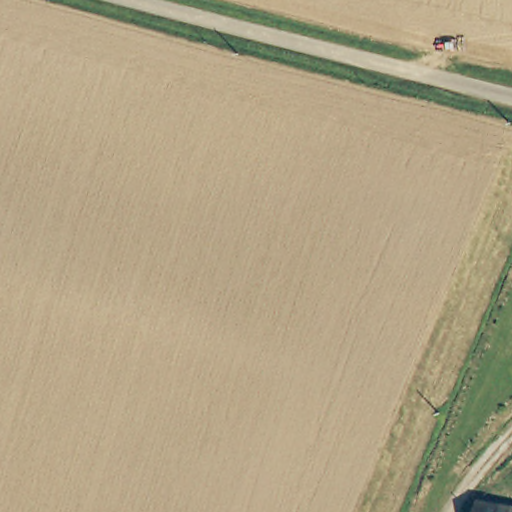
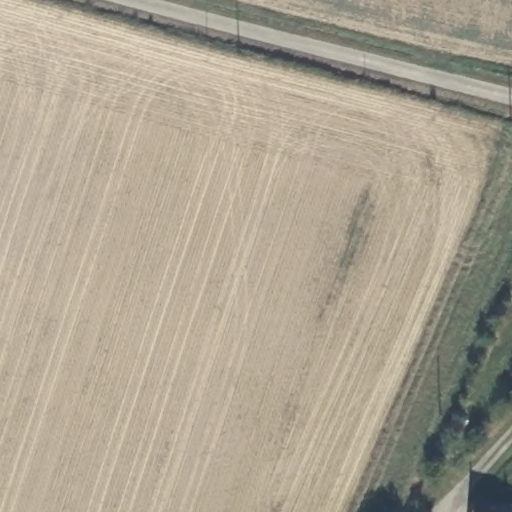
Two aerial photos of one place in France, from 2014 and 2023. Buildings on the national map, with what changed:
unchanged [(470,512),(473,495),(512,502),(512,512),(470,512)]

